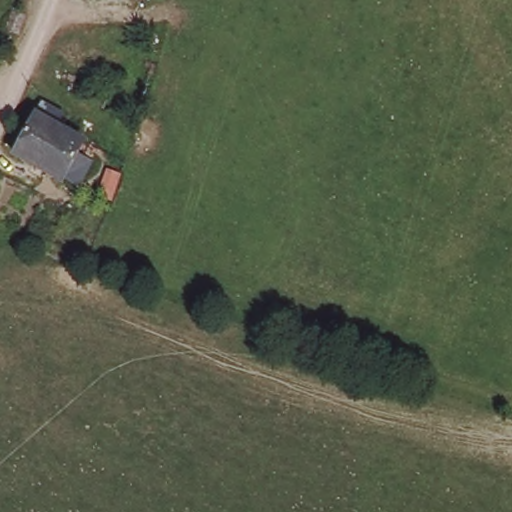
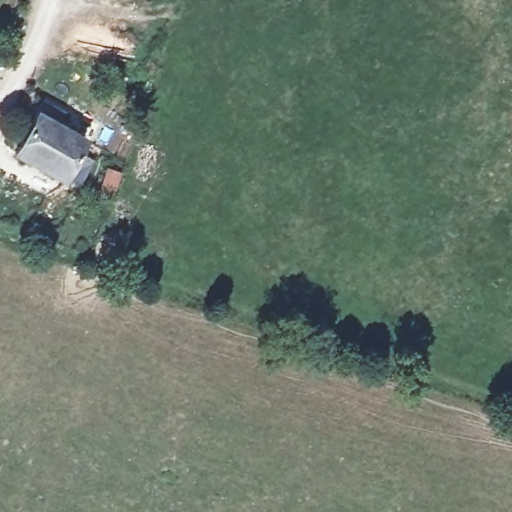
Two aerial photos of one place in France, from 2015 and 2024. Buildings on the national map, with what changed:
unchanged [(60,178),(11,151),(30,118),(32,114),(81,141),(60,178)]

